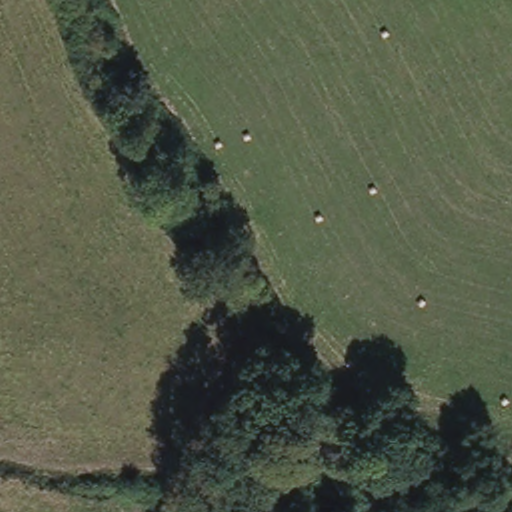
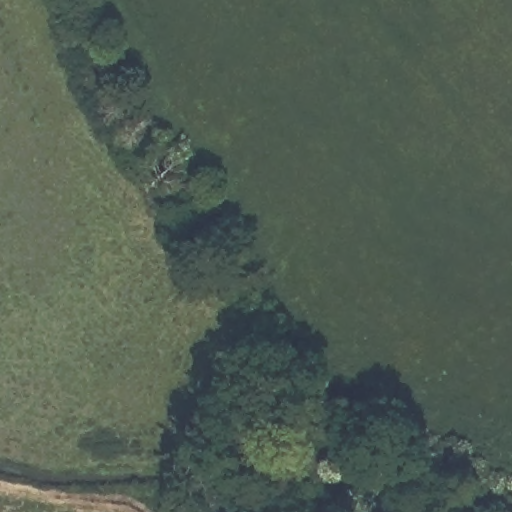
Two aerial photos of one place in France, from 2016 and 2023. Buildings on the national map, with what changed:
unchanged [(274,453),(282,465),(268,474),(260,464),(274,453)]

